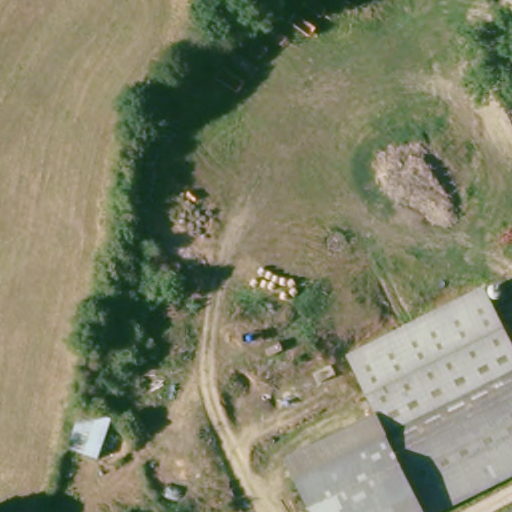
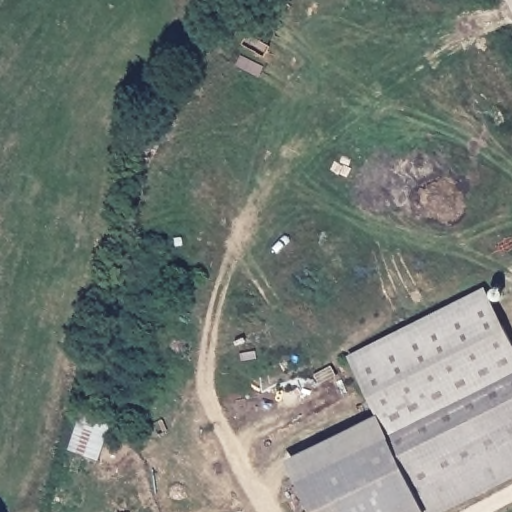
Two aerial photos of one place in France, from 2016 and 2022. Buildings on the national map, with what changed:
unchanged [(371,416),(339,357),(470,283),(512,356),(512,464),(427,512),(426,512),(425,510),(413,489),(371,416)]
unchanged [(78,407),(110,419),(97,460),(67,447),(78,407)]
unchanged [(413,489),(425,510),(421,512),(314,512),(288,458),(371,416),(413,489)]

